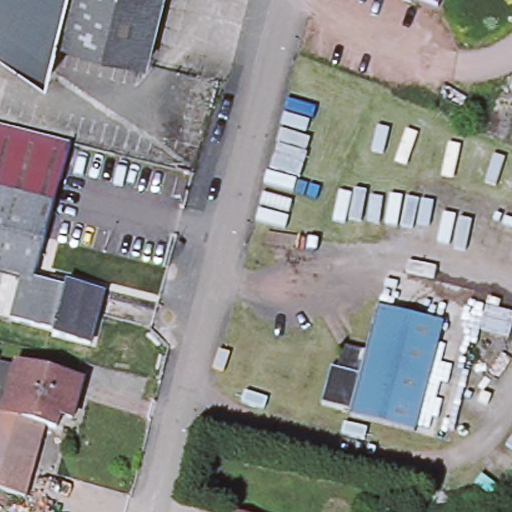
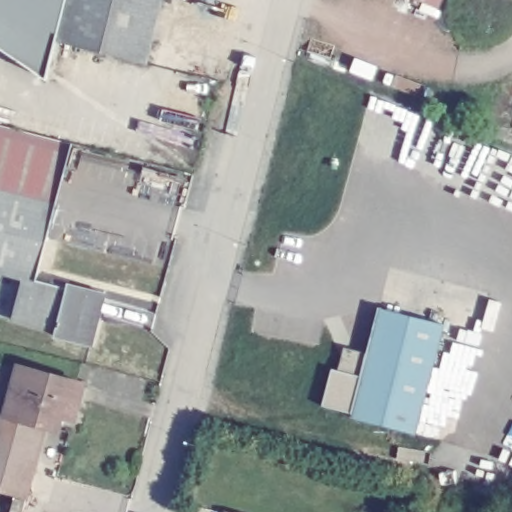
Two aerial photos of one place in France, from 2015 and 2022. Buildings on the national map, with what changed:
unchanged [(47,79),(0,48),(0,0),(77,0),(57,40),(47,79)]
unchanged [(77,0),(161,0),(145,62),(57,40),(77,0)]
unchanged [(417,0),(441,0),(438,9),(417,0)]
unchanged [(0,190),(0,124),(72,142),(62,176),(55,204),(0,190)]
unchanged [(35,281),(23,278),(0,273),(0,190),(55,204),(35,281)]
unchanged [(66,290),(55,330),(12,320),(23,278),(35,281),(66,290)]
unchanged [(55,330),(66,290),(67,285),(104,294),(90,345),(54,335),(55,330)]
unchanged [(332,368),(340,370),(343,356),(352,351),(365,355),(378,307),(443,324),(415,433),(350,417),(352,413),(322,406),(332,368)]
unchanged [(0,405),(4,392),(15,395),(24,365),(88,383),(78,420),(66,417),(62,430),(51,427),(32,499),(0,490),(0,405)]

